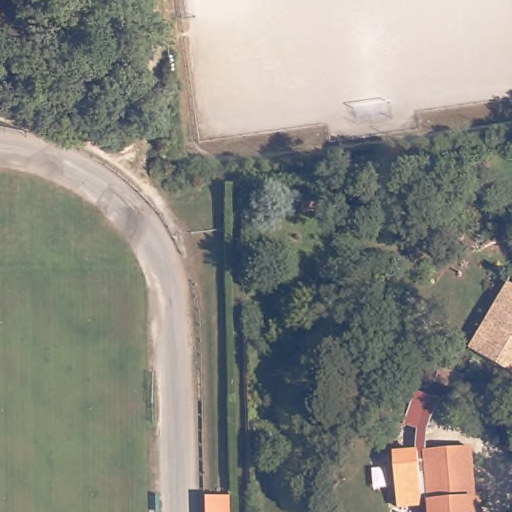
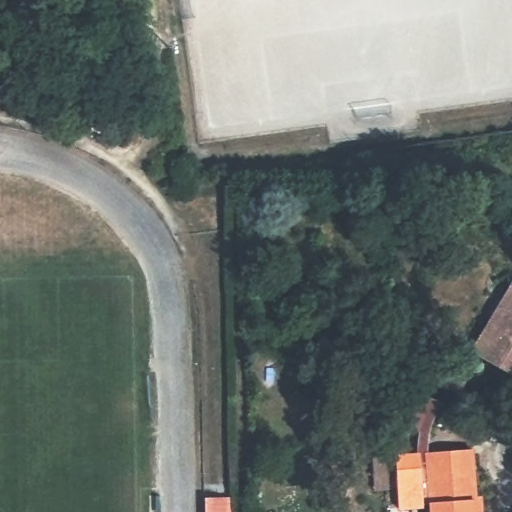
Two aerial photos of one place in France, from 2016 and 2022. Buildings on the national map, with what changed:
unchanged [(481,350),(475,347),(512,284),(512,368),(481,350)]
unchanged [(406,372),(411,358),(416,360),(418,354),(441,363),(439,368),(434,382),(406,372)]
unchanged [(404,427),(381,418),(387,399),(411,408),(404,427)]
unchanged [(426,496),(434,495),(431,447),(476,444),(479,492),(484,492),(486,507),(486,512),(428,512),(426,496)]
unchanged [(232,498),(232,512),(204,512),(204,499),(232,498)]

